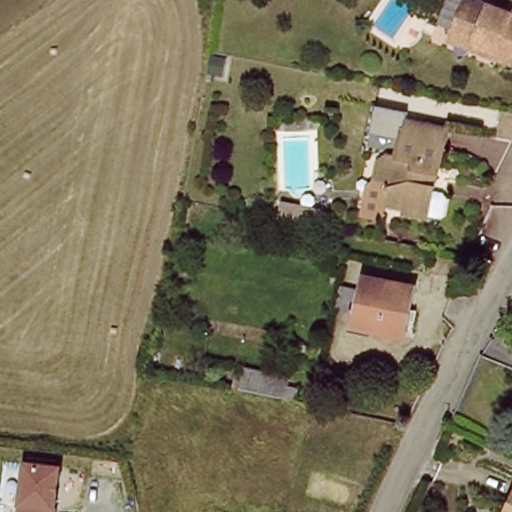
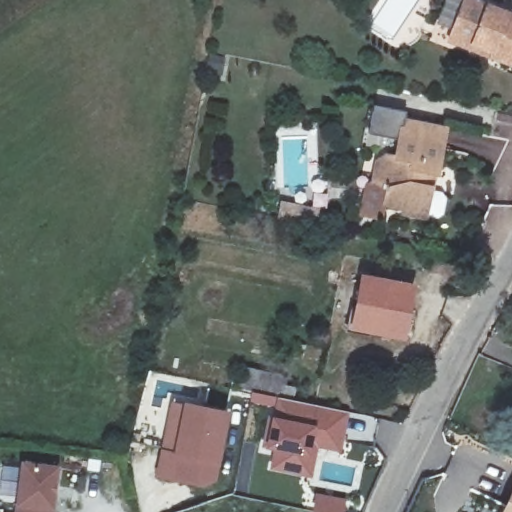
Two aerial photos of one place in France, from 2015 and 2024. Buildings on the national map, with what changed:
unchanged [(466,0),(492,0),(512,13),(512,62),(507,70),(470,46),(446,30),(453,18),(466,0)]
unchanged [(438,168),(429,215),(405,210),(406,202),(398,199),(400,188),(392,186),(386,175),(393,159),(407,153),(416,115),(450,125),(441,168),(438,168)]
new [(342,234),(317,229),(305,227),(307,212),(320,214),(345,219),(342,234)]
unchanged [(413,308),(408,337),(354,330),(362,278),(411,286),(407,308),(413,308)]
new [(320,449),(313,478),(271,469),(271,449),(266,448),(261,447),(268,416),(274,416),(278,407),(252,402),(254,392),(240,389),(245,368),(287,377),(284,383),(298,388),(294,402),(349,412),(342,454),(320,449)]
demolished [(290,379),(285,399),(244,390),(248,370),(290,379)]
new [(195,487),(157,477),(172,402),(185,403),(231,412),(219,481),(195,487)]
unchanged [(55,512),(19,512),(25,463),(60,467),(55,512)]
unchanged [(512,504),(512,506),(511,506),(512,504)]
unchanged [(512,512),(509,512),(511,506),(512,506),(512,512)]

